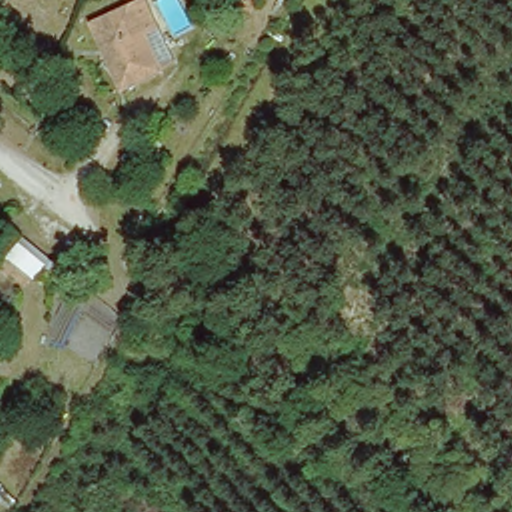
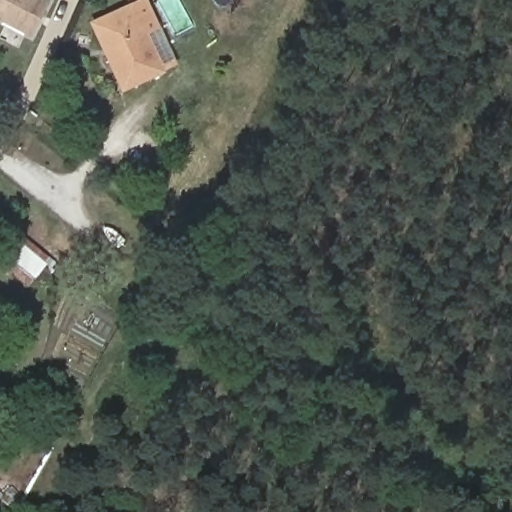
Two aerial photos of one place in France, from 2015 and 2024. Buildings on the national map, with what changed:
new [(0,21),(0,0),(49,0),(30,37),(0,21)]
unchanged [(162,65),(128,82),(100,30),(121,20),(114,6),(125,0),(152,0),(165,25),(147,34),(162,65)]

